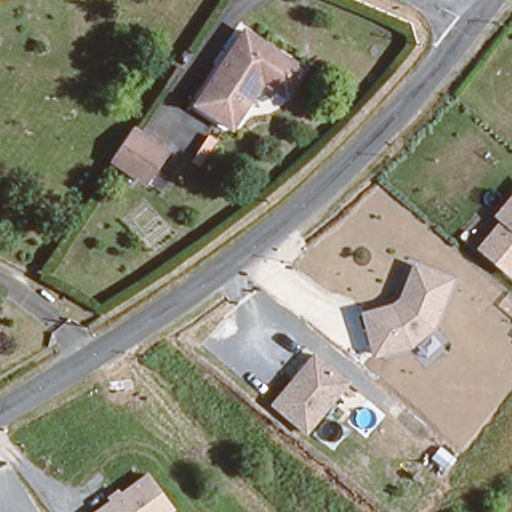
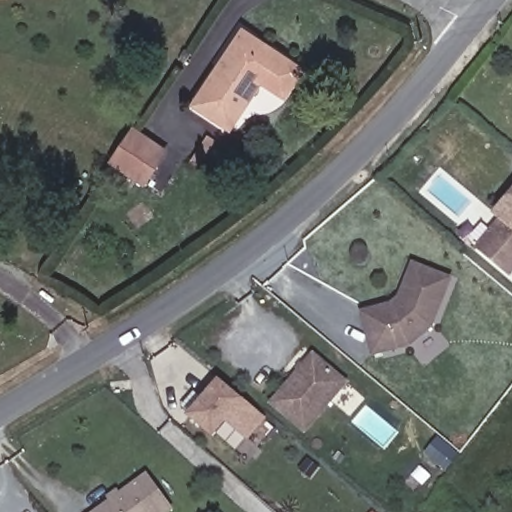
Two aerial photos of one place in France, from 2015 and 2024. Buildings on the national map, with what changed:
unchanged [(190,97),(241,26),(299,66),(280,95),(255,77),(224,121),(190,97)]
unchanged [(134,131),(157,146),(136,178),(113,162),(134,131)]
unchanged [(210,139),(196,160),(186,153),(200,132),(210,139)]
unchanged [(476,246),(512,197),(512,275),(476,246)]
unchanged [(435,330),(413,348),(373,357),(360,312),(398,302),(413,262),(453,276),(435,330)]
unchanged [(307,435),(268,403),(311,349),(352,383),(307,435)]
new [(249,441),(228,423),(215,440),(188,416),(219,379),(244,400),(268,419),(249,441)]
unchanged [(173,512),(93,512),(149,474),(175,510),(173,512)]

